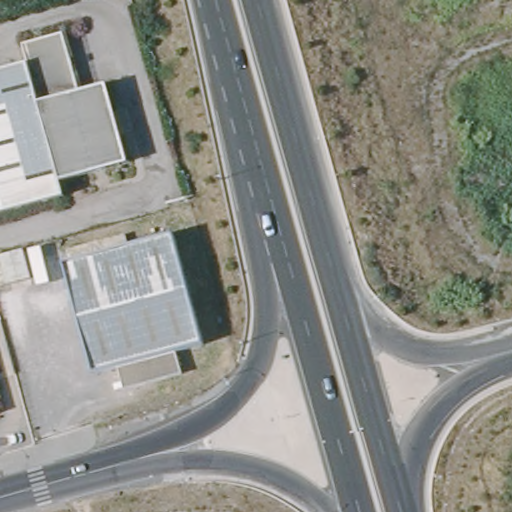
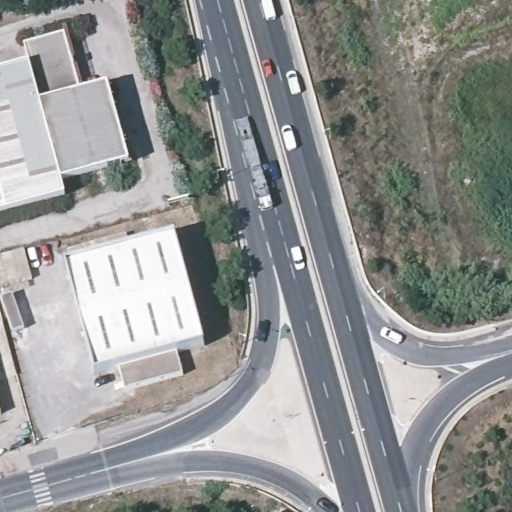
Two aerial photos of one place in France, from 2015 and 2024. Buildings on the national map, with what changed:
unchanged [(120,159),(122,166),(62,183),(65,195),(0,214),(0,72),(28,64),(23,45),(65,34),(81,92),(100,88),(102,95),(109,93),(128,157),(120,159)]
unchanged [(98,372),(67,263),(175,232),(206,342),(98,372)]
unchanged [(3,414),(0,415),(0,403),(3,414)]

